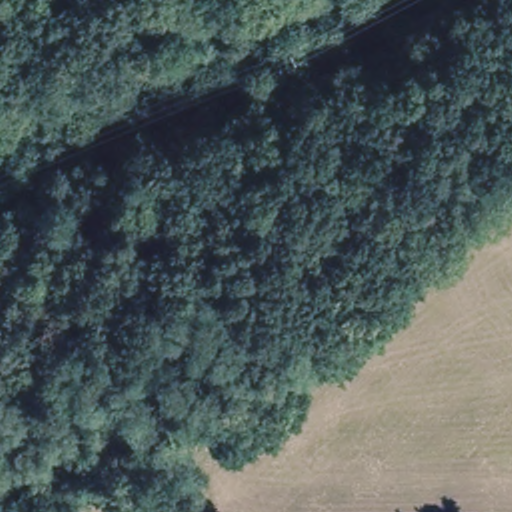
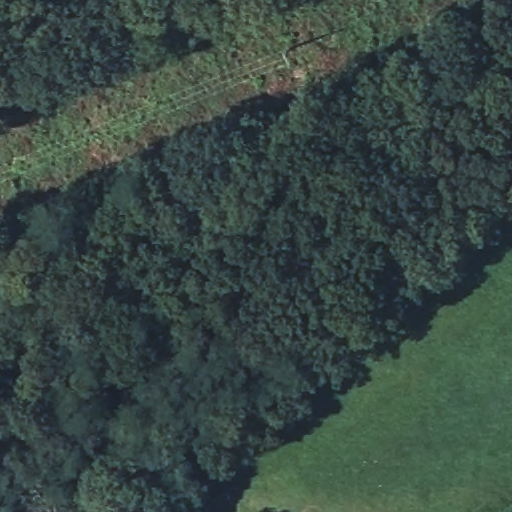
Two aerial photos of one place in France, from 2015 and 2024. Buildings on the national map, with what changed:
[]

